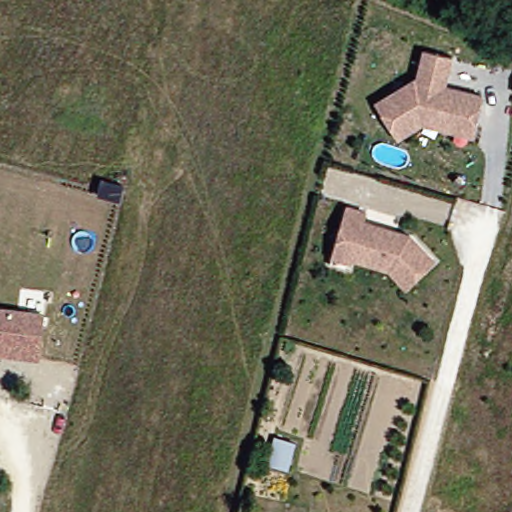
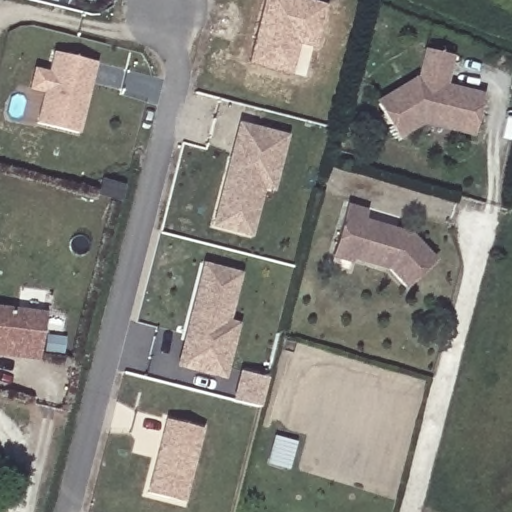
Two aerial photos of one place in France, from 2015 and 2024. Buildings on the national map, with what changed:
new [(315,49),(299,44),(290,74),(246,63),(262,0),(305,0),(326,5),(315,49)]
unchanged [(423,120),(398,133),(377,97),(418,73),(424,45),(453,53),(445,83),(483,94),(478,119),(475,134),(423,120)]
new [(82,131),(41,120),(49,90),(34,86),(39,66),(53,70),(58,49),(100,60),(91,92),(89,104),(82,131)]
new [(257,186),(252,208),(245,234),(211,225),(228,156),(235,126),(240,127),(280,137),(272,167),(267,188),(257,186)]
unchanged [(332,252),(336,237),(346,201),(365,207),(363,216),(411,233),(436,259),(407,287),(390,267),(352,254),(351,258),(332,252)]
new [(199,266),(234,275),(227,301),(222,323),(232,325),(226,347),(219,377),(179,367),(175,366),(182,335),(199,266)]
unchanged [(40,309),(34,353),(17,351),(0,350),(0,304),(40,309)]
new [(240,371),(268,379),(260,408),(231,401),(240,371)]
new [(166,420),(202,429),(184,503),(147,494),(166,420)]
new [(288,470),(266,464),(275,435),(296,441),(288,470)]

